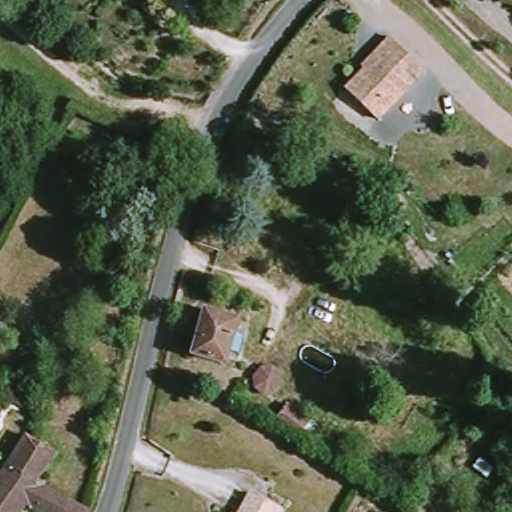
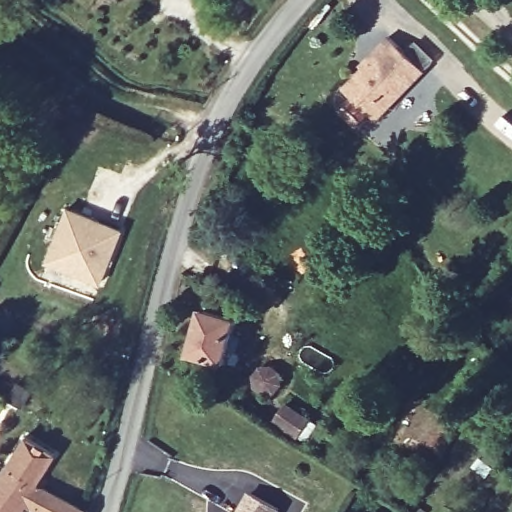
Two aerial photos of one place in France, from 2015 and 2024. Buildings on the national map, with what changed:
unchanged [(379,116),(349,87),(398,41),(427,71),(379,116)]
new [(68,206),(121,228),(100,281),(66,268),(46,259),(55,237),(68,206)]
unchanged [(194,353),(204,311),(239,320),(228,361),(194,353)]
unchanged [(27,508),(25,512),(0,512),(0,484),(23,439),(52,454),(43,473),(53,479),(46,492),(81,512),(33,512),(27,508)]
unchanged [(256,495),(283,510),(282,512),(247,512),(256,495)]

